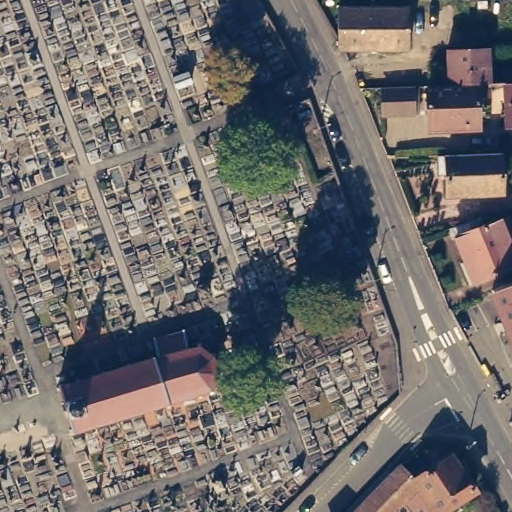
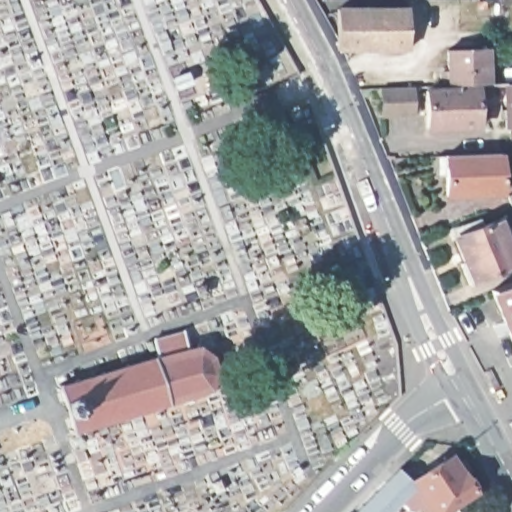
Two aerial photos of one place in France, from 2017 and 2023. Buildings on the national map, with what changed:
unchanged [(347,52),(345,45),(344,45),(339,45),(338,3),(409,4),(409,24),(409,44),(380,45),(380,52),(347,52)]
unchanged [(449,85),(449,82),(442,82),(442,72),(449,72),(447,50),(489,48),(490,83),(449,85)]
unchanged [(287,113),(260,124),(247,92),(275,83),(287,113)]
unchanged [(412,87),(413,115),(384,116),(382,88),(399,87),(412,87)]
unchanged [(477,88),(480,124),(459,125),(459,132),(449,132),(449,126),(428,127),(427,91),(477,88)]
unchanged [(502,188),(447,191),(446,170),(438,170),(437,151),(445,150),(472,149),(495,148),(499,148),(501,148),(502,188)]
unchanged [(508,190),(512,189),(512,200),(508,190)]
unchanged [(489,220),(505,214),(512,233),(512,264),(475,279),(466,258),(470,257),(460,232),(469,229),(465,220),(485,213),(489,220)]
unchanged [(492,289),(512,282),(512,338),(492,289)]
unchanged [(202,338),(206,338),(206,342),(216,350),(219,347),(221,350),(219,353),(222,366),(227,367),(227,370),(223,370),(217,383),(220,388),(215,390),(214,385),(206,388),(207,392),(204,393),(202,390),(177,397),(175,402),(172,402),(171,399),(124,413),(125,415),(122,415),(122,414),(98,421),(100,423),(95,425),(95,422),(84,426),(84,428),(79,429),(79,427),(76,428),(75,424),(77,423),(66,386),(64,386),(62,383),(65,382),(64,380),(69,378),(70,380),(80,377),(80,375),(85,373),(85,376),(107,369),(107,367),(110,366),(110,368),(132,361),(132,360),(135,359),(135,360),(157,354),(157,352),(160,351),(160,352),(162,352),(159,334),(190,326),(193,343),(202,342),(202,338)]
unchanged [(452,456),(459,466),(464,463),(469,470),(464,474),(475,491),(443,512),(426,512),(422,505),(415,510),(404,499),(414,481),(452,456)]
unchanged [(399,468),(414,481),(404,499),(391,512),(356,512),(399,468)]

